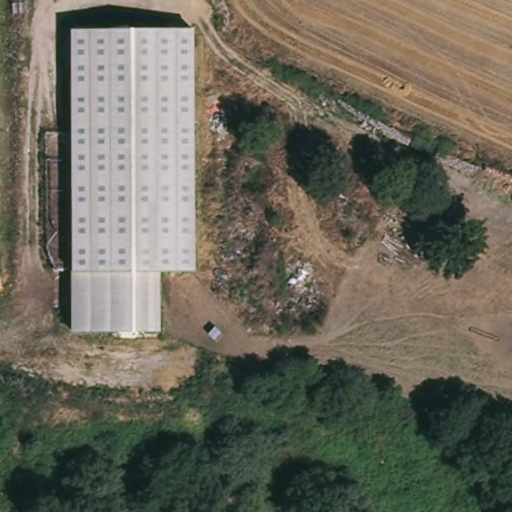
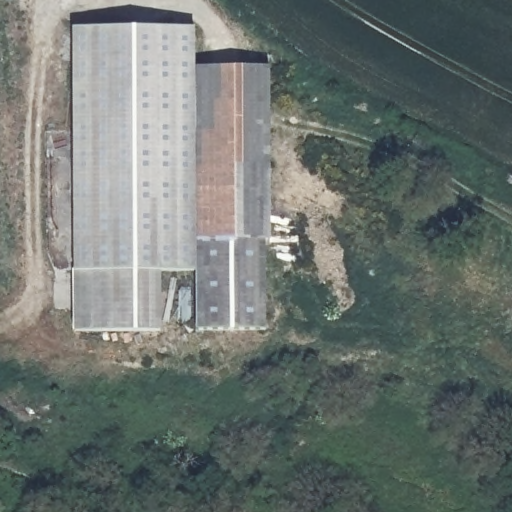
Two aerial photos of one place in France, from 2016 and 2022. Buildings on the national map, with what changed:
unchanged [(73,334),(73,274),(70,30),(195,29),(196,273),(161,273),(161,334),(73,334)]
new [(270,66),(271,240),(266,240),(267,329),(197,329),(196,273),(195,66),(270,66)]

